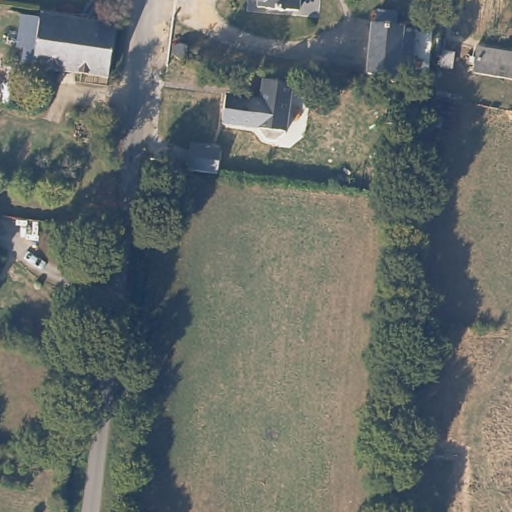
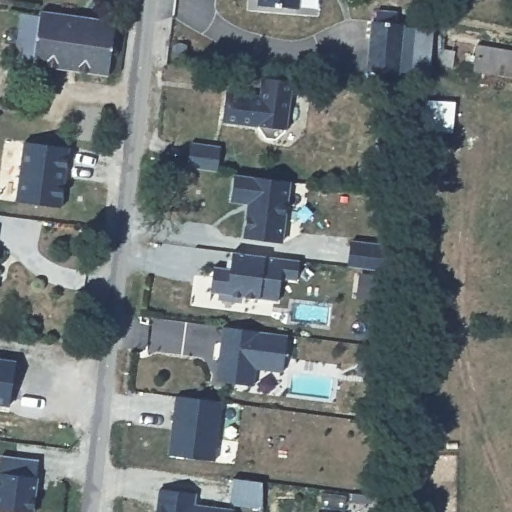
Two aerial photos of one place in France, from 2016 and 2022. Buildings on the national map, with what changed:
unchanged [(259,4),(259,0),(300,0),(300,7),(259,4)]
unchanged [(414,13),(409,62),(380,60),(384,10),(414,13)]
unchanged [(115,24),(107,74),(30,65),(37,12),(115,24)]
unchanged [(191,46),(189,58),(172,57),(169,55),(168,53),(167,51),(168,48),(169,47),(171,46),(173,45),(191,46)]
unchanged [(512,80),(473,77),(477,50),(512,54),(512,80)]
unchanged [(222,90),(257,94),(259,74),(281,77),(288,77),(282,127),(273,136),(262,135),(255,124),(219,118),(222,90)]
new [(189,141),(218,145),(215,171),(185,167),(189,141)]
new [(23,144),(68,148),(66,170),(63,169),(62,183),(64,183),(62,208),(17,203),(23,144)]
new [(235,173),(289,180),(282,242),(244,237),(249,201),(231,199),(235,173)]
unchanged [(5,223),(2,243),(6,243),(0,280),(0,223),(5,223)]
new [(353,239),(387,244),(384,269),(349,264),(353,239)]
new [(215,267),(232,270),(234,253),(301,262),(298,282),(282,280),(279,303),(212,293),(215,267)]
new [(287,334),(282,373),(256,370),(254,386),(216,381),(223,326),(287,334)]
new [(15,360),(9,405),(0,404),(0,358),(15,360)]
new [(174,394),(220,401),(211,460),(165,452),(174,394)]
new [(17,457),(40,460),(37,477),(32,512),(14,512),(0,510),(0,465),(2,455),(17,457)]
new [(237,479),(267,484),(267,509),(239,505),(235,500),(237,479)]
new [(159,506),(155,505),(158,487),(194,493),(192,505),(231,511),(231,512),(157,512),(159,506)]

